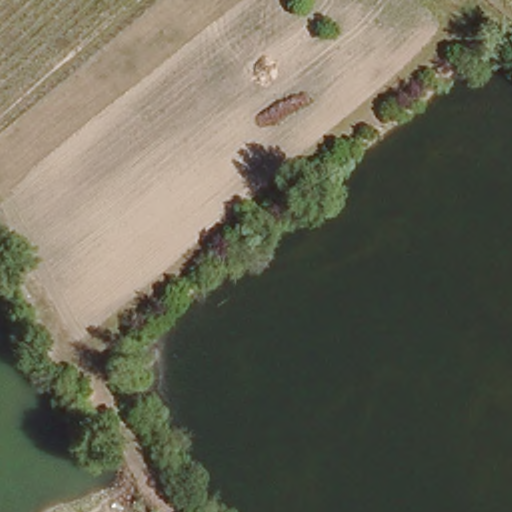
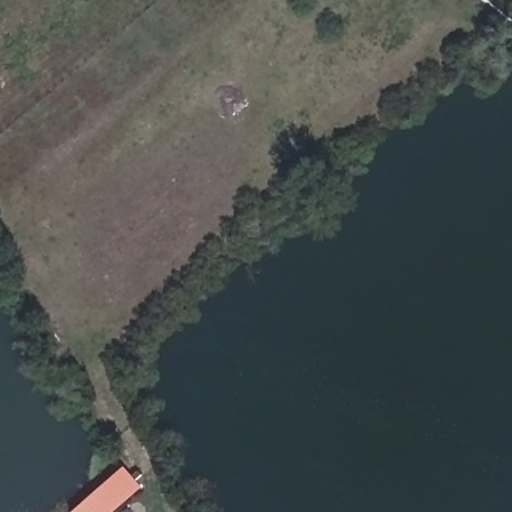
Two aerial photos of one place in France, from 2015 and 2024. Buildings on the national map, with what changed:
new [(108,512),(70,512),(120,469),(136,487),(108,512)]

